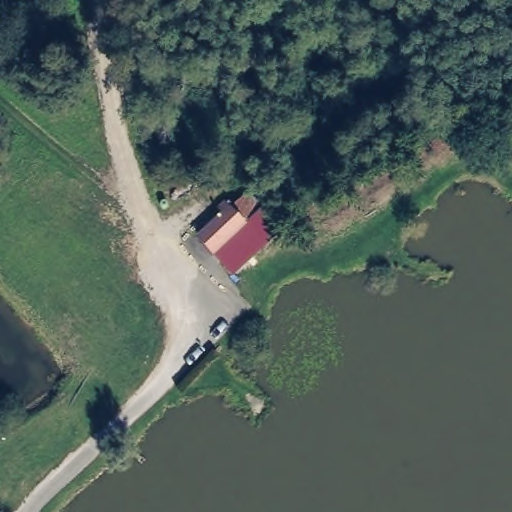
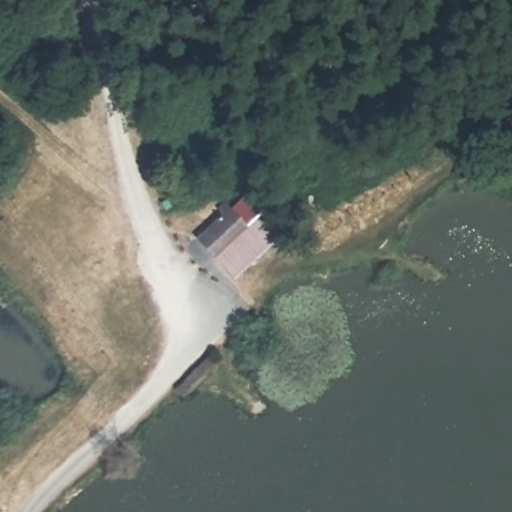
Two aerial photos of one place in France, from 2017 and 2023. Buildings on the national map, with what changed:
unchanged [(198,236),(247,194),(267,211),(215,256),(198,236)]

